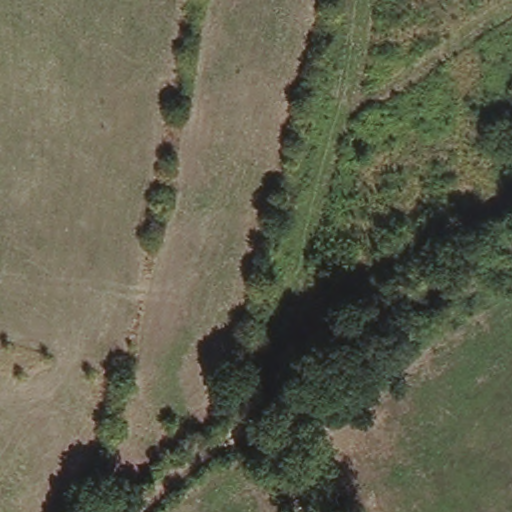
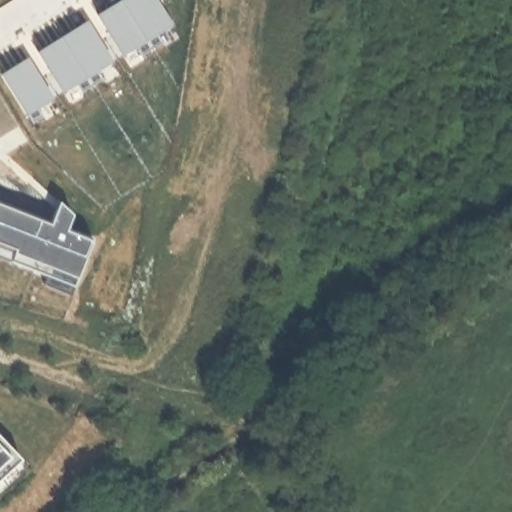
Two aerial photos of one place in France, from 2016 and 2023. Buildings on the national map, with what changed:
new [(146,41),(123,54),(97,14),(122,0),(146,41)]
new [(172,25),(146,41),(122,0),(157,0),(172,25)]
new [(112,61),(86,77),(62,36),(86,20),(112,61)]
new [(86,77),(63,91),(37,51),(62,36),(86,77)]
new [(51,100),(28,113),(2,73),(27,59),(51,100)]
new [(49,220),(57,202),(73,213),(66,228),(91,236),(75,280),(50,272),(52,267),(0,250),(0,202),(49,220)]
new [(25,469),(0,495),(0,441),(25,469)]

